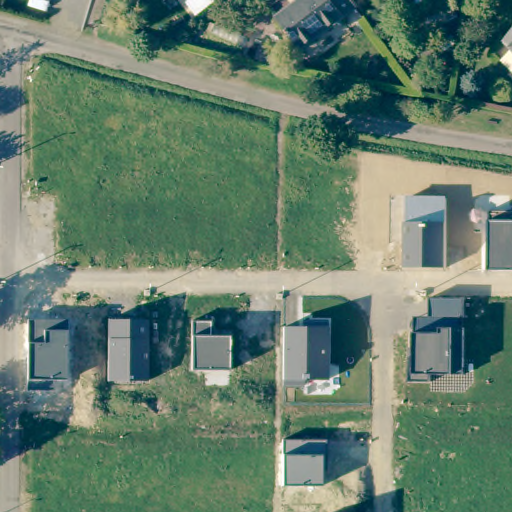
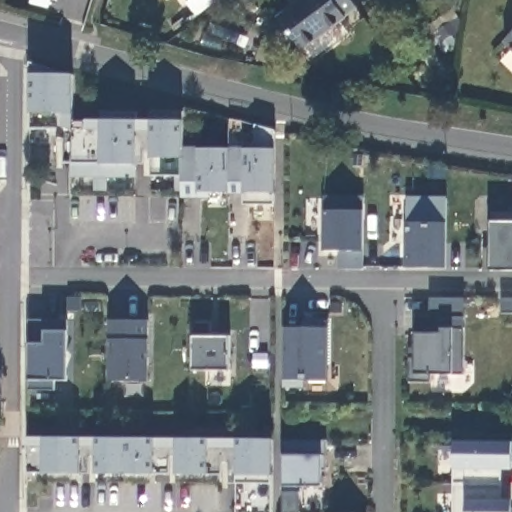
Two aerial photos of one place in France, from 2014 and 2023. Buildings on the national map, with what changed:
unchanged [(349,17),(350,18),(306,51),(281,18),(305,0),(356,0),(361,8),(349,17)]
unchanged [(512,35),(512,50),(504,43),(512,35)]
new [(73,76),(72,122),(99,121),(136,121),(149,121),(183,121),(183,149),(196,148),(230,148),(242,148),(254,148),(253,126),(273,131),(273,205),(242,206),(244,194),(227,193),(210,193),(208,199),(179,199),(178,177),(149,176),(153,159),(148,159),(142,165),(135,166),(134,178),(107,179),(107,191),(94,191),(94,179),(69,178),(72,163),(63,163),(63,140),(56,139),(58,129),(30,129),(34,114),(28,114),(28,74),(31,74),(30,63),(73,76)]
new [(324,197),(364,198),(363,255),(363,270),(345,270),(346,251),(323,251),(324,197)]
unchanged [(444,269),(404,269),(403,223),(406,223),(406,197),(445,198),(444,269)]
unchanged [(489,224),(489,215),(512,214),(512,272),(489,273),(489,224)]
unchanged [(430,319),(430,300),(463,300),(463,319),(459,319),(459,329),(463,329),(462,376),(451,376),(430,375),(429,383),(410,384),(414,374),(414,335),(441,335),(441,331),(414,332),(414,321),(430,319)]
unchanged [(28,379),(29,344),(29,320),(68,321),(68,332),(68,381),(54,380),(54,391),(27,390),(28,379)]
unchanged [(110,321),(147,322),(147,381),(109,381),(110,321)]
unchanged [(211,322),(211,337),(230,337),(229,370),(192,370),(192,323),(211,322)]
unchanged [(284,328),(304,328),(304,322),(326,322),(326,329),(326,382),(304,380),(304,388),(283,388),(284,381),(284,328)]
new [(41,437),(82,439),(94,439),(154,439),(208,439),(273,440),(270,484),(271,512),(237,512),(240,485),(235,484),(238,476),(174,476),(153,475),(93,474),(81,474),(41,474),(41,437)]
new [(453,470),(453,440),(511,442),(512,471),(512,512),(453,512),(453,470)]
unchanged [(325,442),(326,471),(322,471),(322,487),(284,486),(284,456),(284,441),(325,442)]

